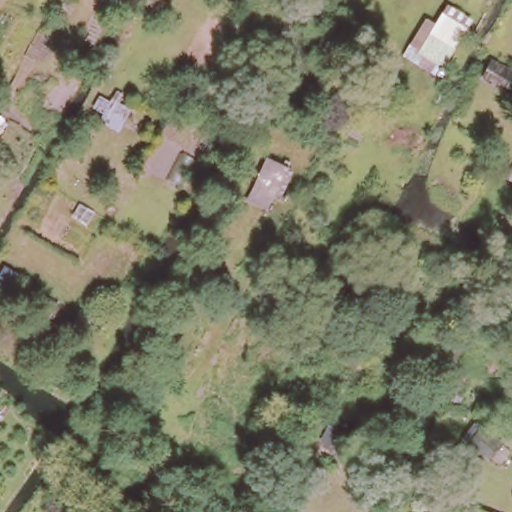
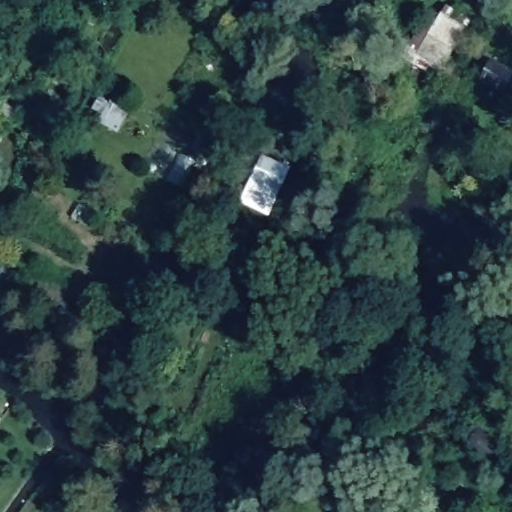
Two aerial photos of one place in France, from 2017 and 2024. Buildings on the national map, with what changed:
unchanged [(435,77),(403,56),(424,18),(434,22),(447,3),(474,16),(435,77)]
unchanged [(512,69),(512,87),(509,92),(483,80),(492,60),(512,69)]
unchanged [(89,114),(99,94),(131,106),(118,129),(89,114)]
unchanged [(0,141),(8,128),(23,136),(14,150),(0,141)]
unchanged [(248,193),(253,184),(261,188),(267,178),(279,184),(274,194),(269,204),(248,193)]
unchanged [(54,304),(47,318),(33,310),(39,297),(54,304)]
unchanged [(432,339),(424,357),(404,348),(414,330),(432,339)]
unchanged [(345,421),(336,441),(319,433),(329,413),(345,421)]
unchanged [(501,441),(488,458),(466,440),(478,426),(501,441)]

